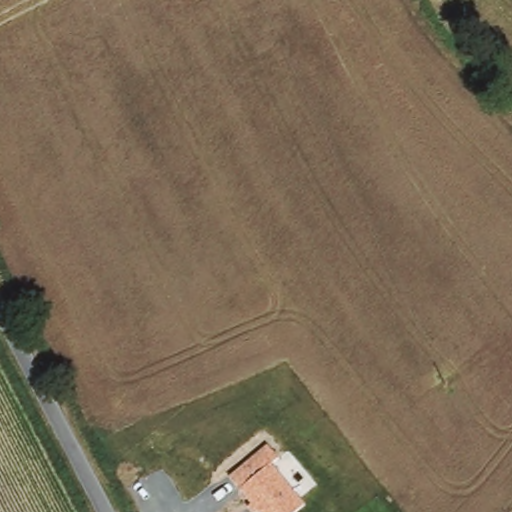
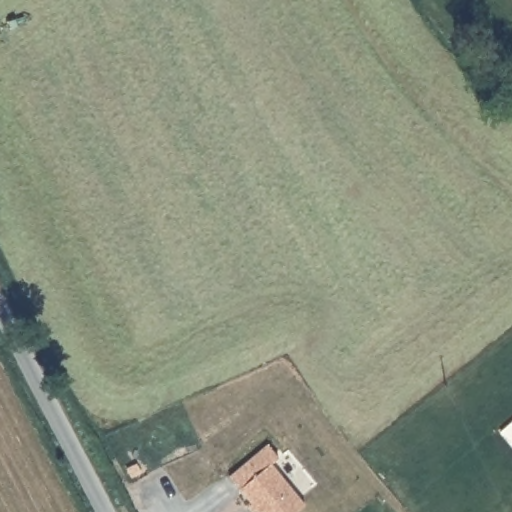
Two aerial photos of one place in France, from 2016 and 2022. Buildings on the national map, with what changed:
unchanged [(282,457),(271,465),(305,504),(295,512),(250,512),(244,505),(249,501),(227,477),(267,445),(282,457)]

